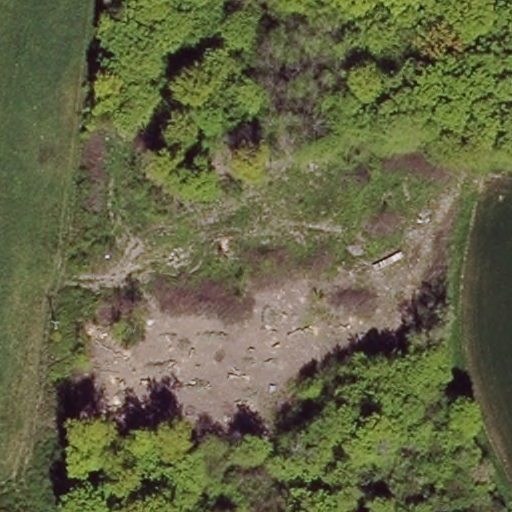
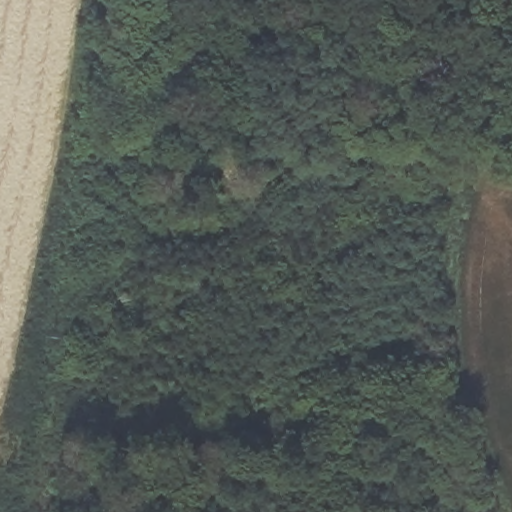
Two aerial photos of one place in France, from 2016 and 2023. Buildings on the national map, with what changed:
[]

